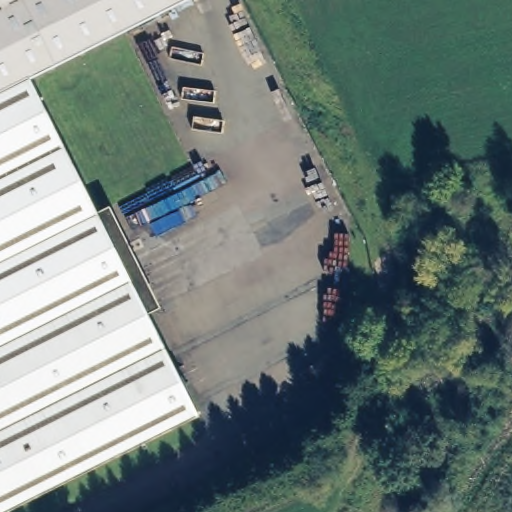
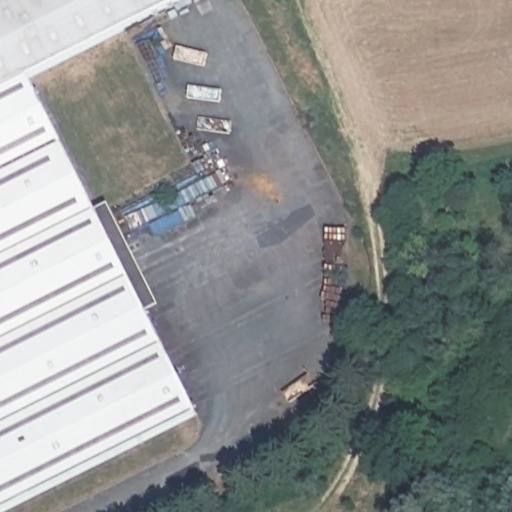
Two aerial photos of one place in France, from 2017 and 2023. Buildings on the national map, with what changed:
unchanged [(30,78),(88,192),(201,412),(130,448),(2,512),(0,512),(0,0),(187,0),(30,78)]

